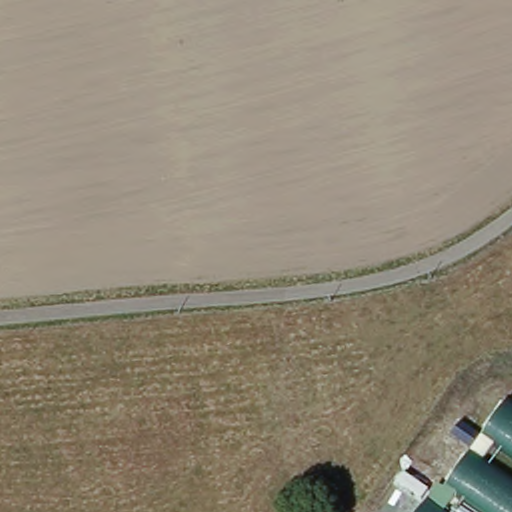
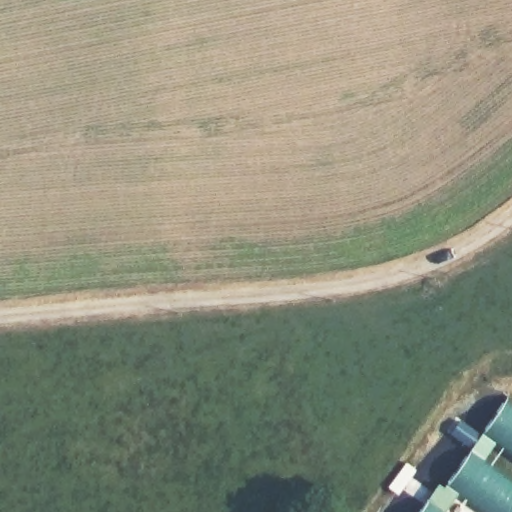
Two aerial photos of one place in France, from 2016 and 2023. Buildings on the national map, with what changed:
unchanged [(500,445),(492,457),(512,472),(512,512),(484,512),(451,488),(512,402),(512,454),(500,445)]
unchanged [(456,495),(445,512),(418,512),(437,482),(456,495)]

